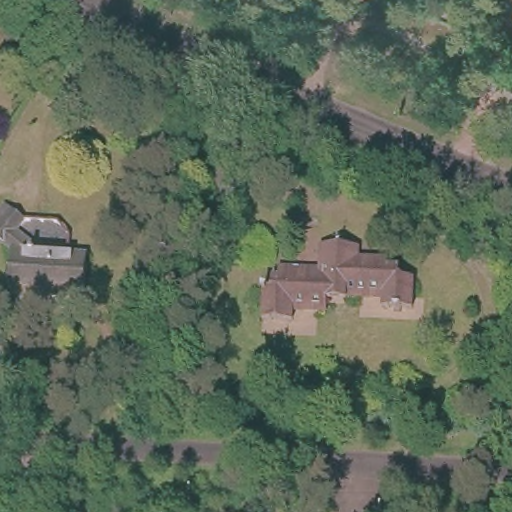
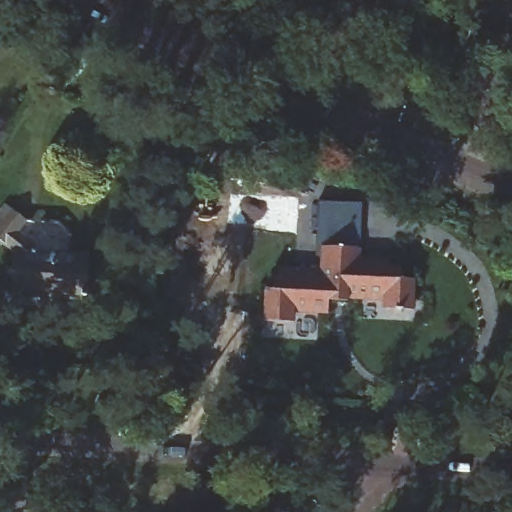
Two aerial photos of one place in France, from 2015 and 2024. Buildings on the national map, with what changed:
new [(318,202),(362,203),(360,263),(352,263),(352,254),(315,256),(318,202)]
unchanged [(9,301),(8,262),(0,259),(0,216),(18,224),(13,240),(31,246),(30,261),(84,266),(82,299),(87,298),(87,306),(9,301)]
unchanged [(267,335),(266,302),(268,302),(270,291),(272,289),(277,289),(277,280),(315,279),(315,256),(352,254),(352,263),(383,262),(384,269),(398,269),(398,273),(415,272),(415,296),(403,298),(385,299),(385,290),(363,290),(364,297),(333,298),(333,305),(329,312),(318,318),(302,317),(293,323),(294,334),(267,335)]

